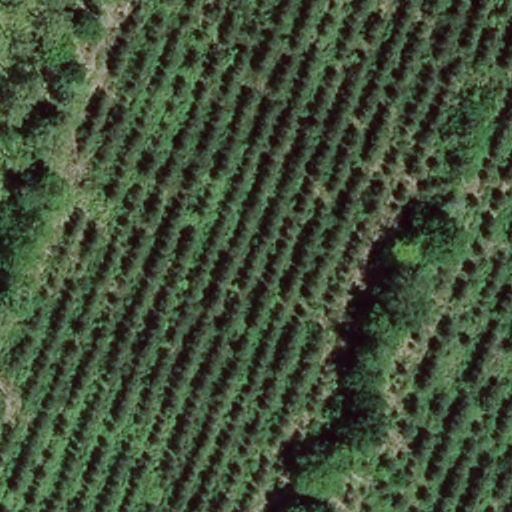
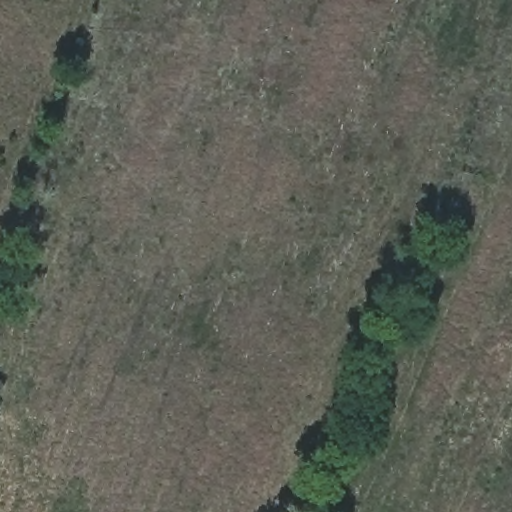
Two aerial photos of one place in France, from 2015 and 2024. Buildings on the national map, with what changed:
[]

